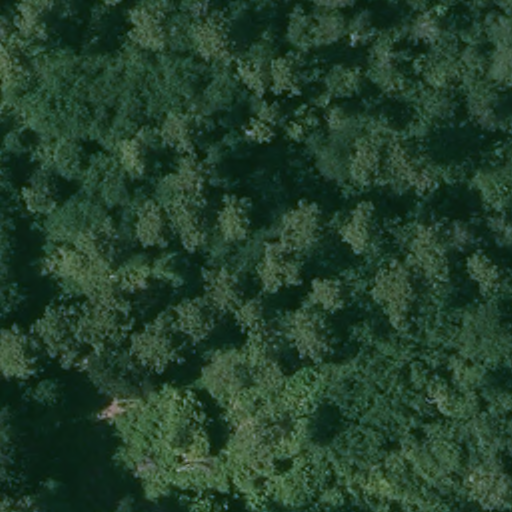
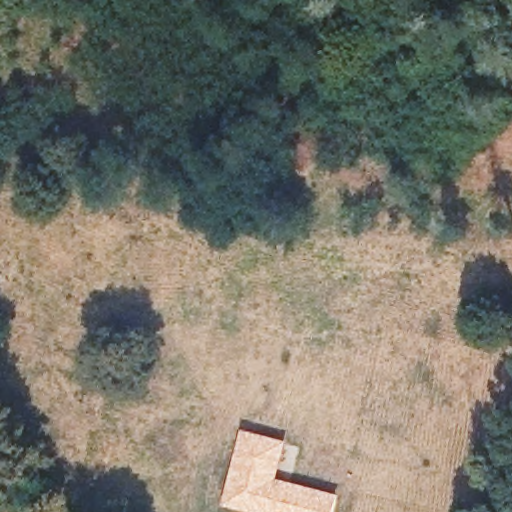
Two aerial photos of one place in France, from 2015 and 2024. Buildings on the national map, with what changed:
unchanged [(37,329),(68,332),(64,366),(34,362),(37,329)]
new [(289,440),(279,477),(340,493),(335,512),(250,512),(224,505),(243,428),(289,440)]

